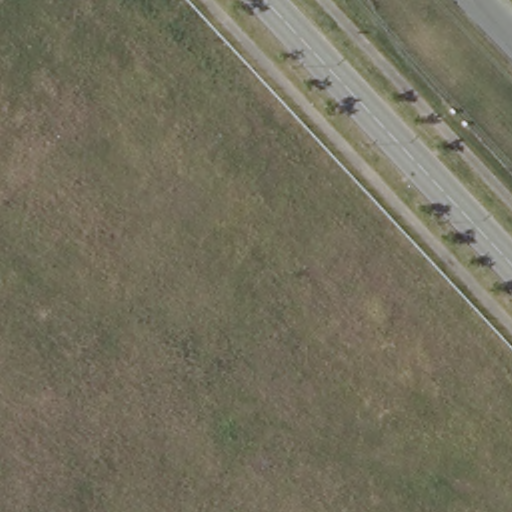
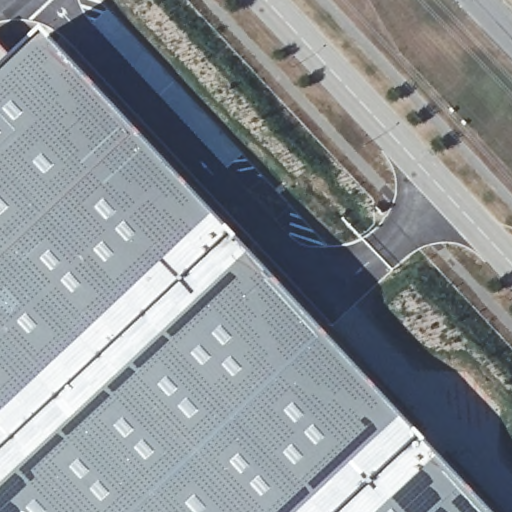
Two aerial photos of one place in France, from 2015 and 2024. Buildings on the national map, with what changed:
new [(18,65),(49,34),(88,79),(220,221),(427,444),(488,512),(0,512),(0,81),(18,65)]
new [(18,65),(0,81),(0,45),(18,65)]

